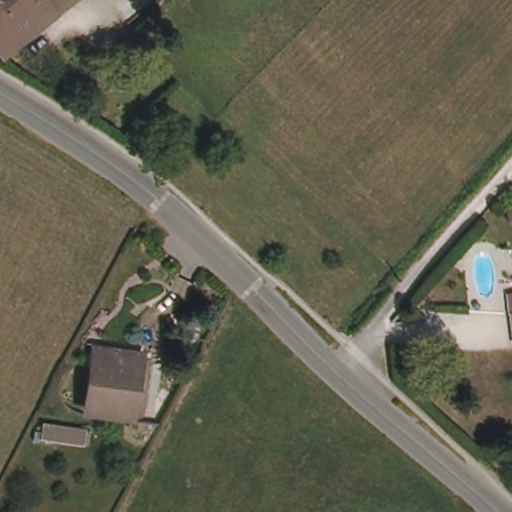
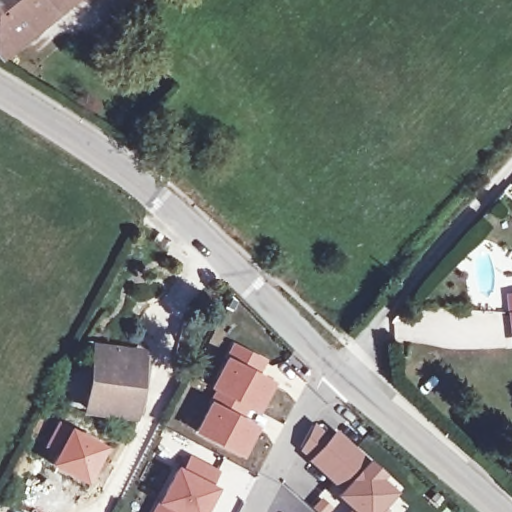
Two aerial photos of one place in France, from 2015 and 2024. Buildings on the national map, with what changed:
unchanged [(17,22),(0,0),(46,0),(17,22)]
new [(232,341),(268,359),(260,373),(272,379),(255,413),(252,412),(249,417),(208,398),(211,390),(207,387),(232,341)]
unchanged [(96,343),(148,353),(138,413),(84,403),(96,343)]
new [(208,398),(249,417),(258,422),(240,458),(191,432),(208,398)]
unchanged [(90,431),(90,447),(42,442),(42,423),(90,431)]
new [(337,495),(340,490),(308,460),(311,457),(300,449),(314,423),(330,436),(335,430),(367,459),(385,475),(382,479),(396,493),(383,506),(387,510),(386,512),(346,512),(350,506),(337,495)]
new [(157,502),(175,467),(181,470),(189,456),(217,471),(210,485),(215,488),(204,512),(152,512),(157,502)]

